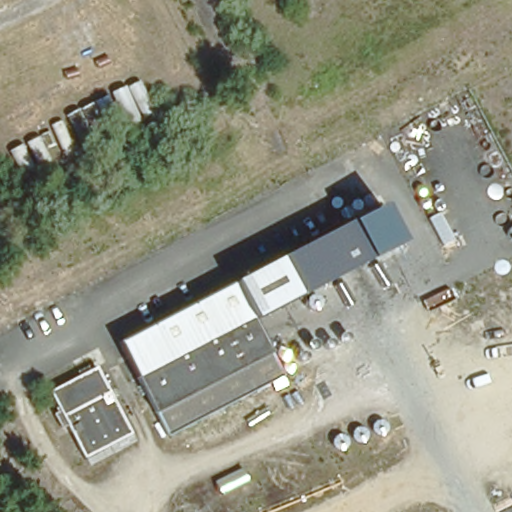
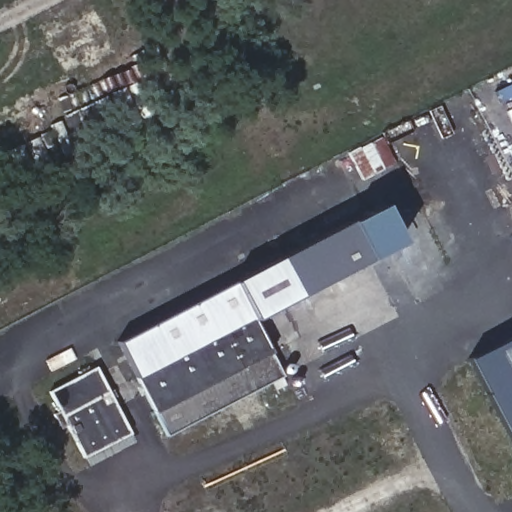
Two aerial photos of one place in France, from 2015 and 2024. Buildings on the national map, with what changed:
unchanged [(381,206),(400,242),(372,256),(354,221),(381,206)]
unchanged [(285,257),(338,230),(354,221),(372,256),(356,264),(303,291),(285,257)]
unchanged [(120,342),(285,257),(303,291),(259,313),(289,374),(169,437),(127,356),(120,342)]
new [(469,357),(512,335),(512,442),(469,357)]
unchanged [(109,394),(118,409),(130,435),(85,458),(50,393),(96,369),(109,394)]

